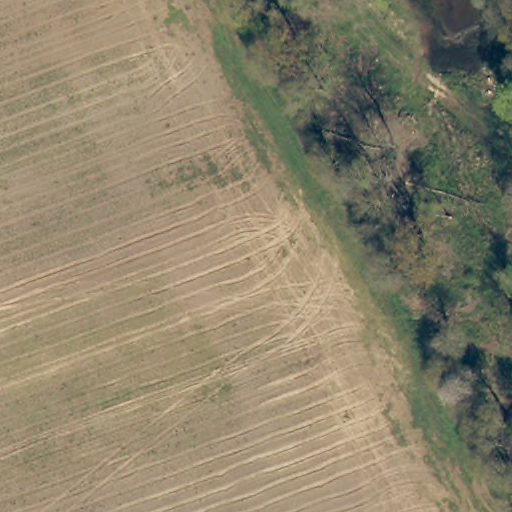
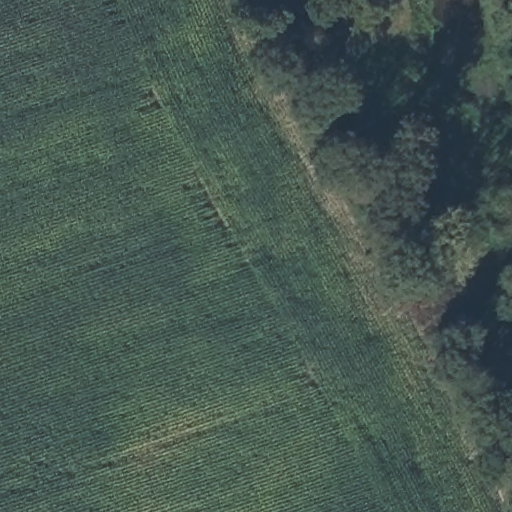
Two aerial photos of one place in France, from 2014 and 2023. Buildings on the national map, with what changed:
[]

